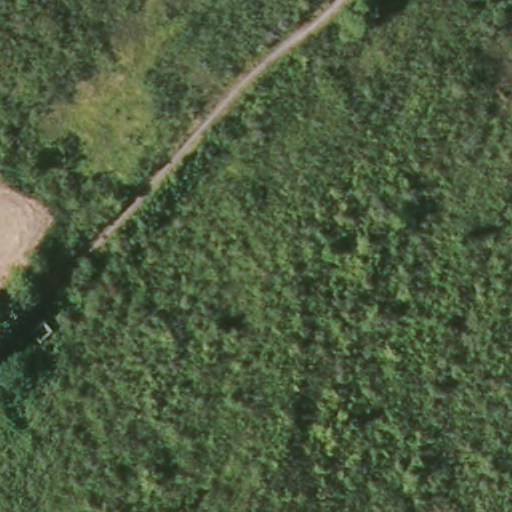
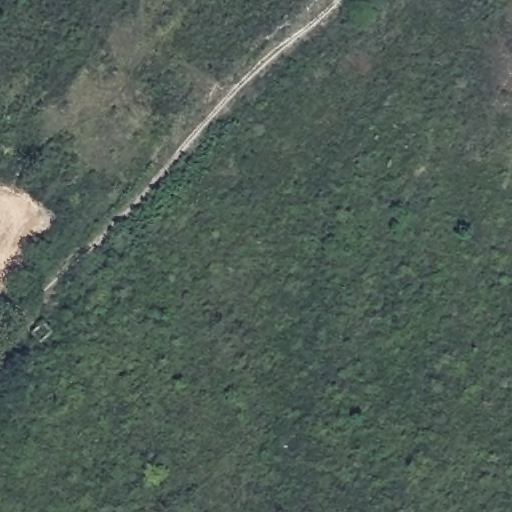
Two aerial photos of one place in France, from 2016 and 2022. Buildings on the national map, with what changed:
unchanged [(23,323),(32,314),(42,322),(33,332),(23,323)]

